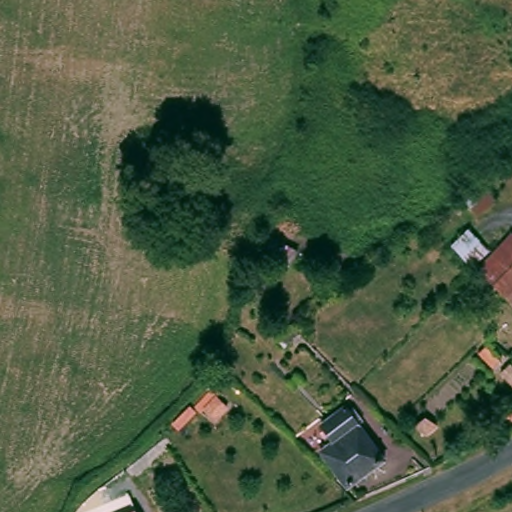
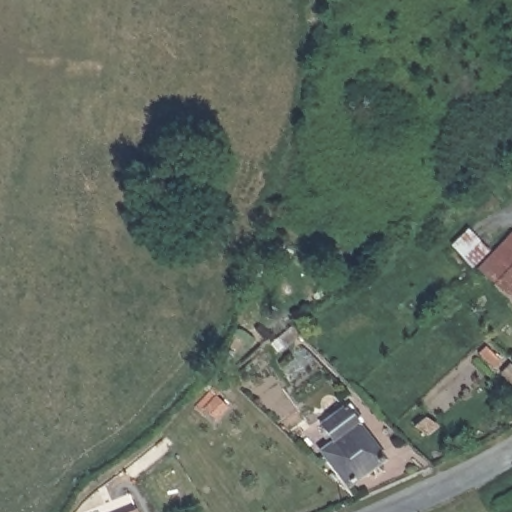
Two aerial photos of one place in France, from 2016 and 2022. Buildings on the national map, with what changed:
unchanged [(482,184),(491,196),(474,209),(464,197),(482,184)]
unchanged [(474,268),(452,243),(467,225),(494,249),(512,231),(512,304),(474,268)]
unchanged [(295,329),(280,341),(274,334),(288,321),(295,329)]
unchanged [(344,485),(319,447),(332,438),(321,422),(346,406),(349,412),(355,408),(363,421),(358,424),(381,461),(344,485)]
unchanged [(140,512),(134,512),(139,510),(140,512)]

